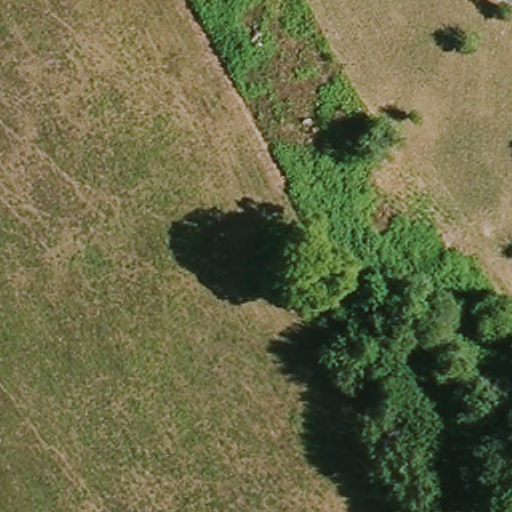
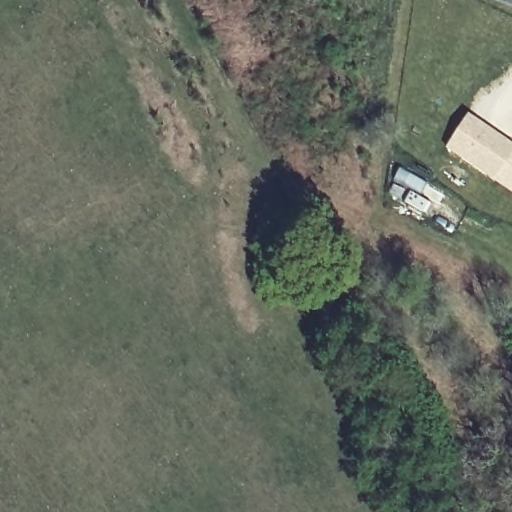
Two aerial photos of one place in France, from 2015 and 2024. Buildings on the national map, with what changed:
new [(512,145),(512,155),(495,180),(445,148),(467,116),(512,145)]

